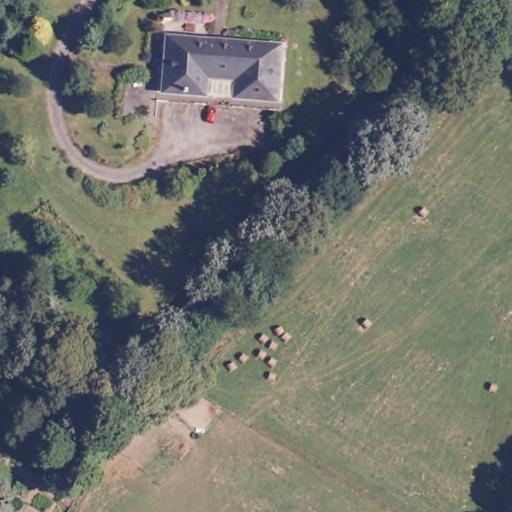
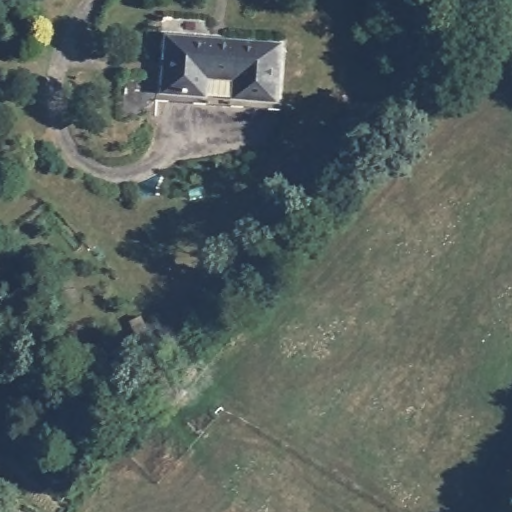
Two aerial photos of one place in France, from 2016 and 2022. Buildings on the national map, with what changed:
unchanged [(279,49),(275,102),(236,99),(236,81),(207,77),(204,96),(162,92),(168,38),(279,49)]

